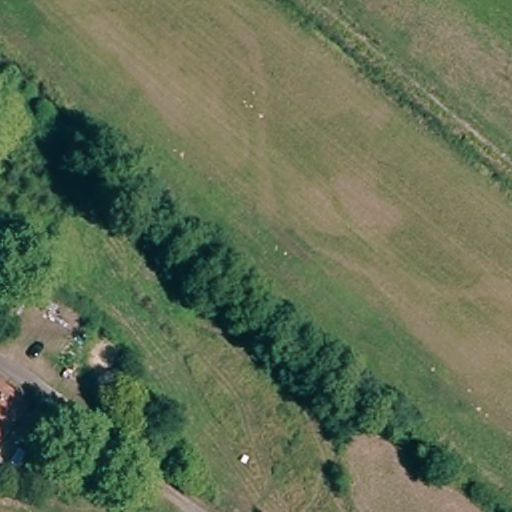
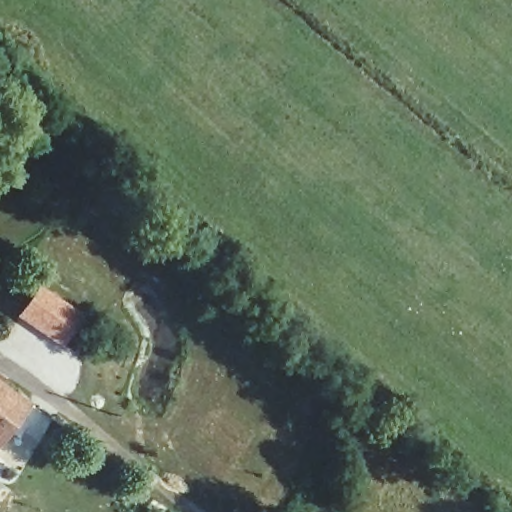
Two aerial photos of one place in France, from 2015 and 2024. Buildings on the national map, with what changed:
new [(82,314),(60,346),(16,315),(38,284),(82,314)]
unchanged [(25,400),(0,437),(0,381),(25,400)]

